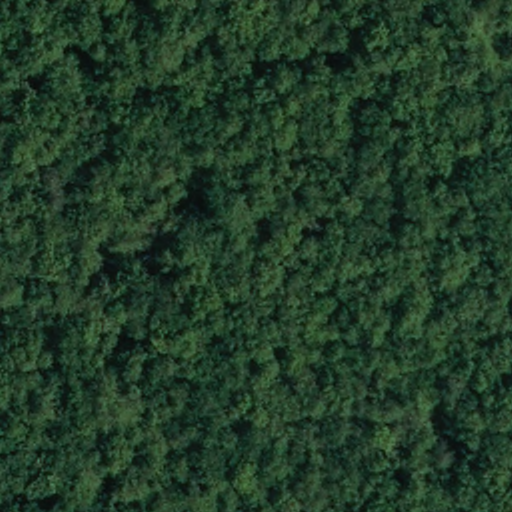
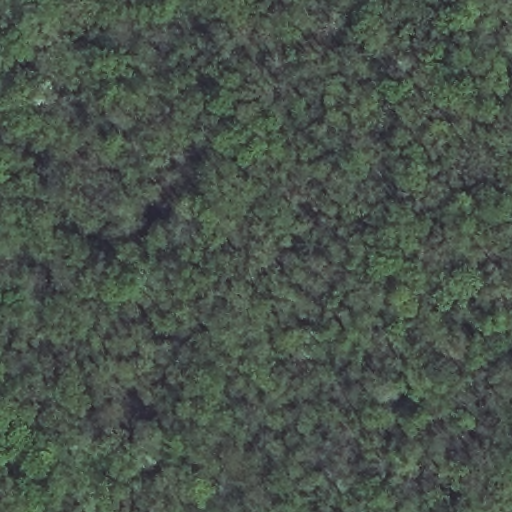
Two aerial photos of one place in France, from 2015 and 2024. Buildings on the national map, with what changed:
[]

